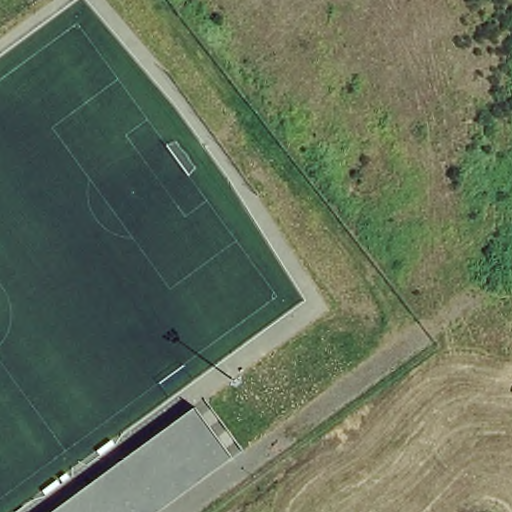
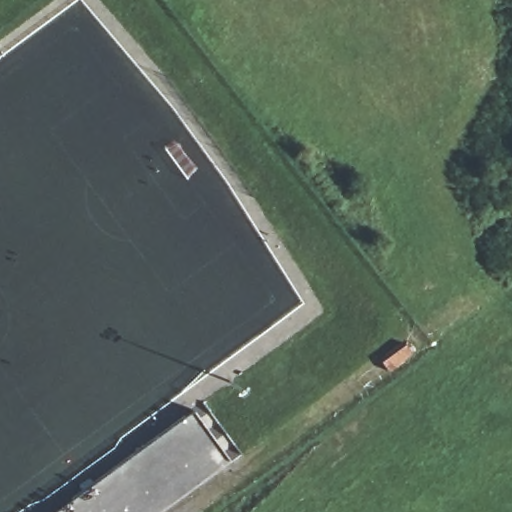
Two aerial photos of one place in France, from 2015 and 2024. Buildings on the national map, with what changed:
unchanged [(84,489),(93,482),(185,415),(190,420),(197,414),(231,460),(160,512),(52,512),(72,498),(84,489)]

